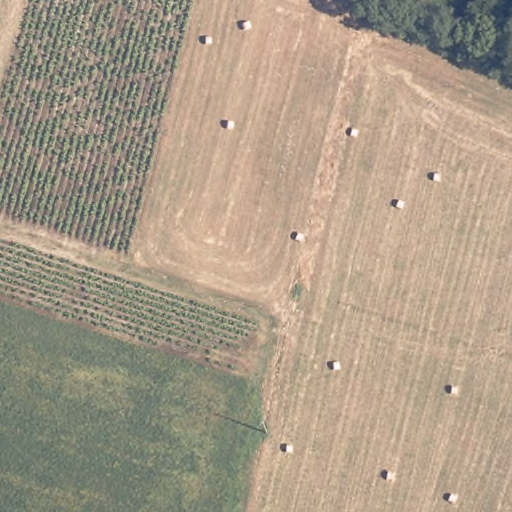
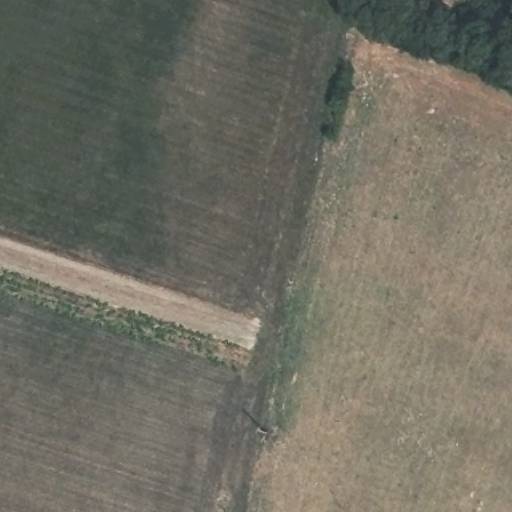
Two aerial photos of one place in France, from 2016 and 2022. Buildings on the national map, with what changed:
[]

